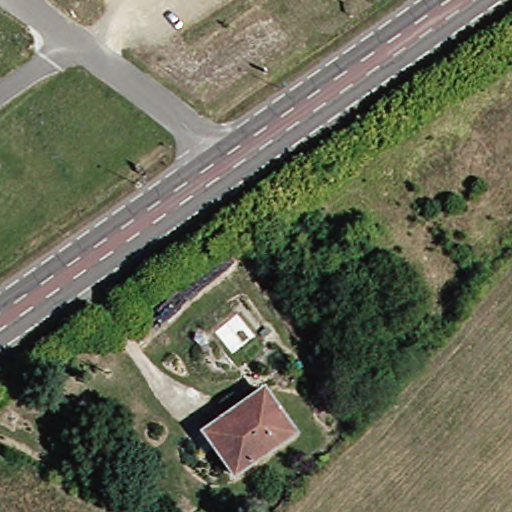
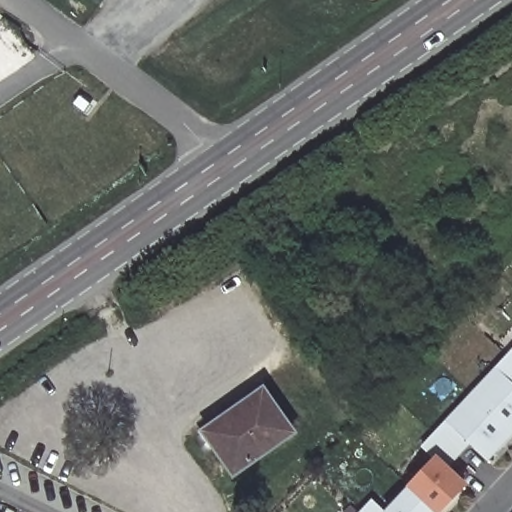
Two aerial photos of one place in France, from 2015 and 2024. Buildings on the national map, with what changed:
unchanged [(108,0),(110,0),(109,1),(108,0)]
new [(487,462),(468,445),(446,466),(468,485),(442,512),(359,512),(371,499),(384,512),(435,456),(420,448),(512,347),(512,436),(487,462)]
unchanged [(203,433),(243,404),(261,391),(291,433),(233,474),(205,436),(203,433)]

